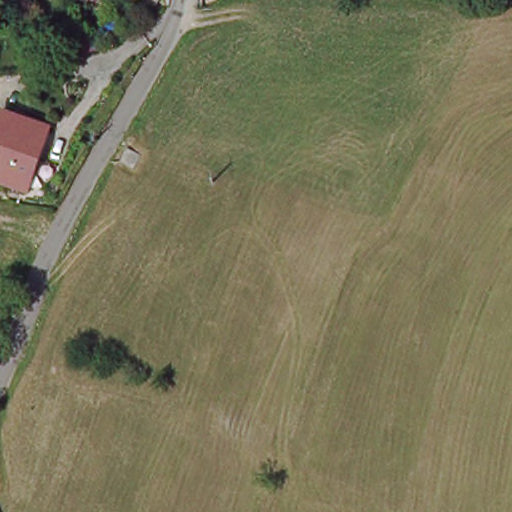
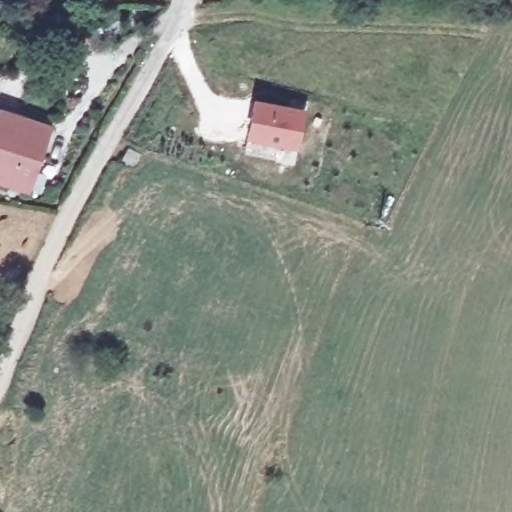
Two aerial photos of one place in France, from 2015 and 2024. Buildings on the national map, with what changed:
new [(301,112),(294,144),(247,134),(254,101),(301,112)]
unchanged [(50,123),(28,187),(0,177),(0,115),(2,108),(50,123)]

